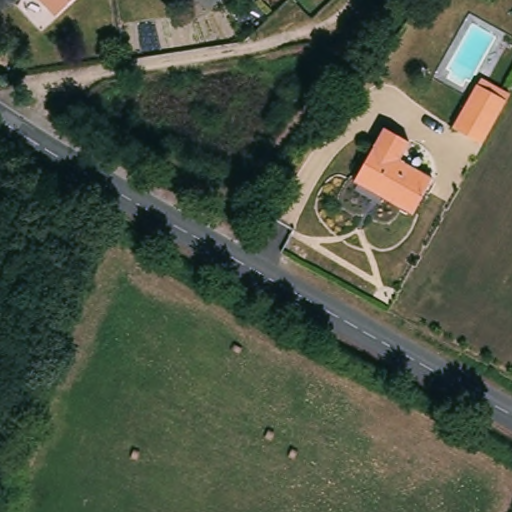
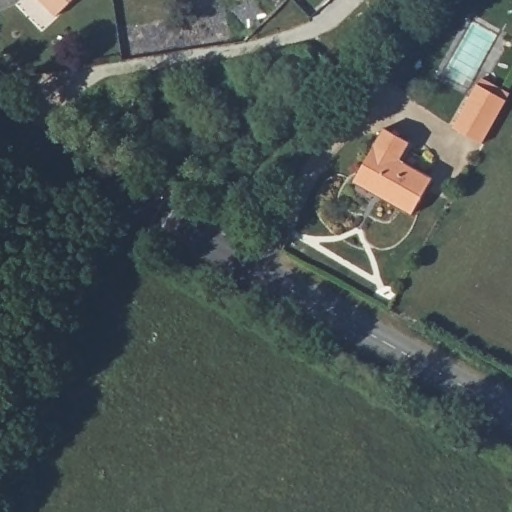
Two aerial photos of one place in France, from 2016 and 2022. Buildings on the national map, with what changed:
unchanged [(39,0),(73,0),(55,17),(39,0)]
unchanged [(453,128),(477,84),(506,100),(482,144),(453,128)]
unchanged [(394,160),(426,178),(407,213),(350,181),(380,129),(404,143),(394,160)]

